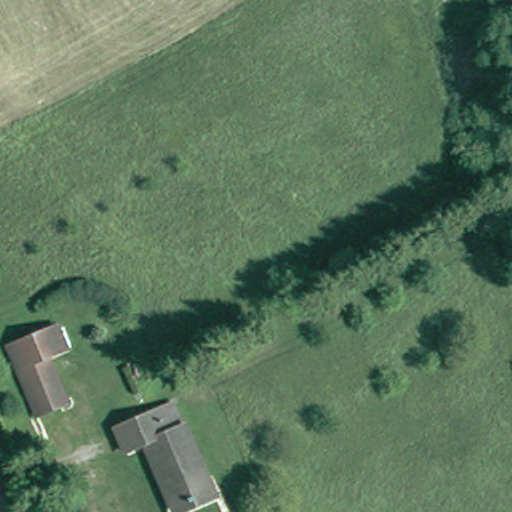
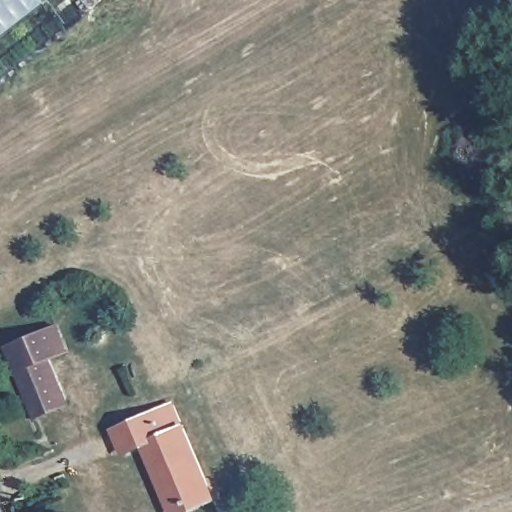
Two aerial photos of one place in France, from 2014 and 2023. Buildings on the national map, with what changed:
new [(0,41),(0,0),(52,0),(52,1),(0,41)]
unchanged [(7,354),(56,327),(70,351),(52,360),(74,402),(43,420),(7,354)]
unchanged [(215,498),(181,512),(173,512),(146,448),(125,457),(116,433),(175,408),(215,498)]

